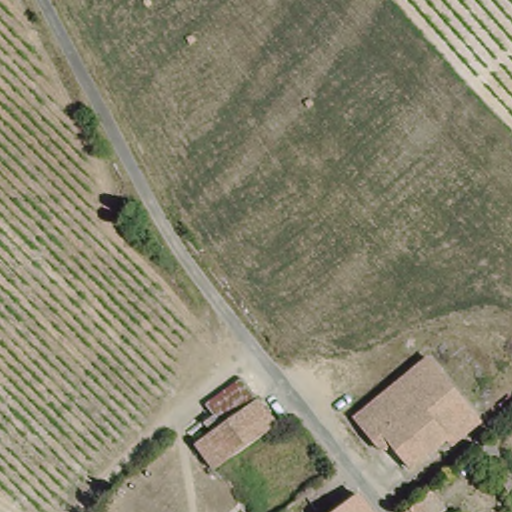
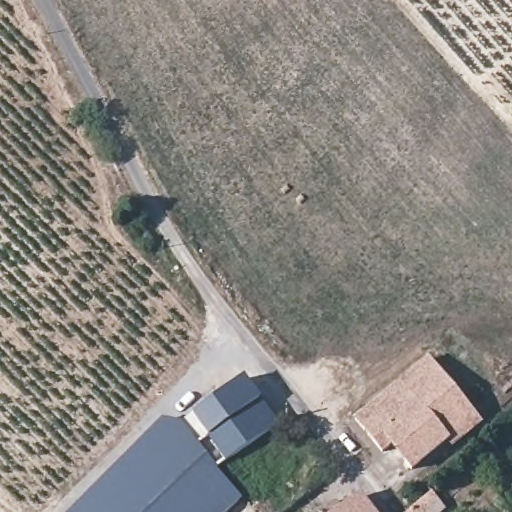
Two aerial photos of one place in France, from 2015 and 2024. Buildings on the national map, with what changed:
unchanged [(450,449),(443,440),(407,466),(390,443),(378,452),(350,415),(430,353),(483,424),(450,449)]
demolished [(208,468),(189,444),(205,431),(198,421),(207,414),(198,404),(237,374),(272,424),(210,467),(208,468)]
new [(217,470),(243,499),(229,512),(71,512),(164,419),(183,422),(245,377),(282,425),(217,470)]
unchanged [(438,505),(431,512),(401,512),(427,489),(438,505)]
unchanged [(360,493),(374,512),(320,512),(319,511),(334,498),(342,507),(360,493)]

